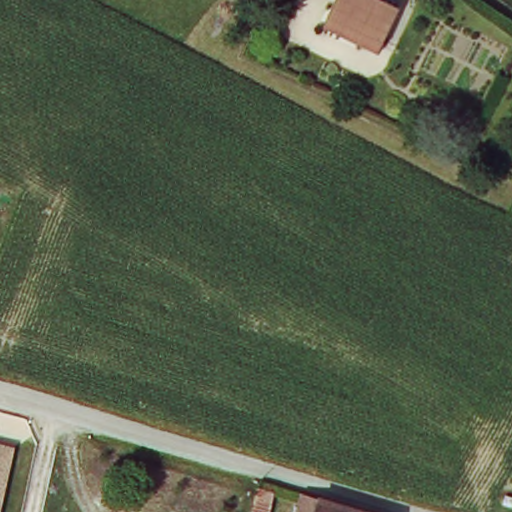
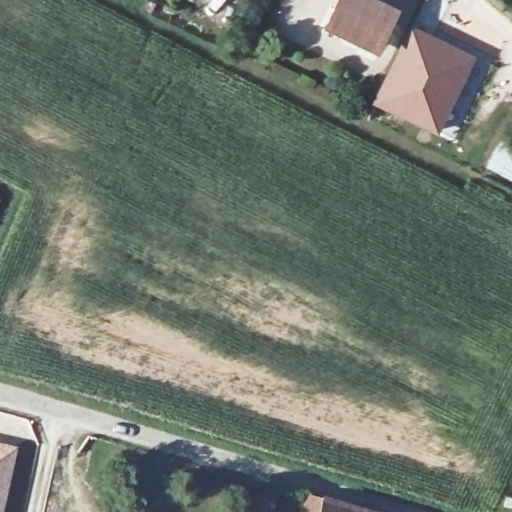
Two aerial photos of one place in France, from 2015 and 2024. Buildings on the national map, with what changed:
unchanged [(376,0),(399,10),(382,47),(329,25),(340,0),(376,0)]
new [(476,52),(439,130),(374,98),(411,20),(476,52)]
unchanged [(3,512),(0,512),(0,443),(19,446),(3,512)]
unchanged [(276,489),(273,512),(253,512),(258,485),(276,489)]
unchanged [(362,512),(302,512),(307,495),(362,512)]

